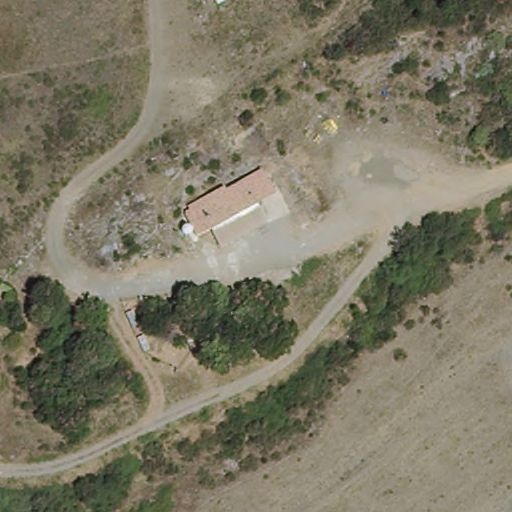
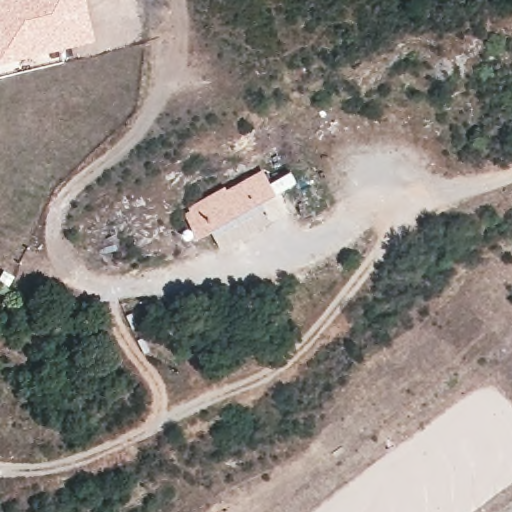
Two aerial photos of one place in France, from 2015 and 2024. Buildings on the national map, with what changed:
new [(92,41),(0,63),(0,0),(82,0),(92,41)]
unchanged [(195,204),(264,169),(284,197),(213,232),(195,204)]

